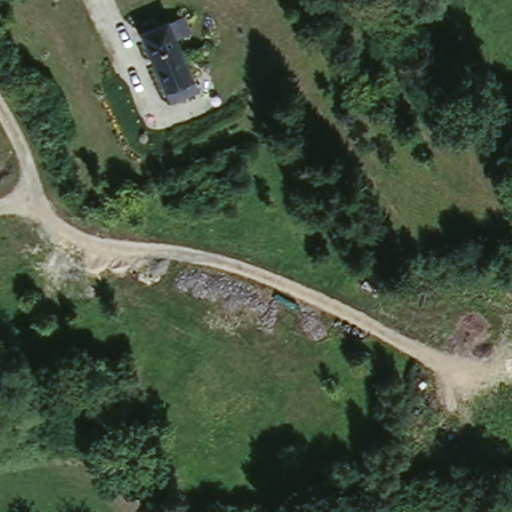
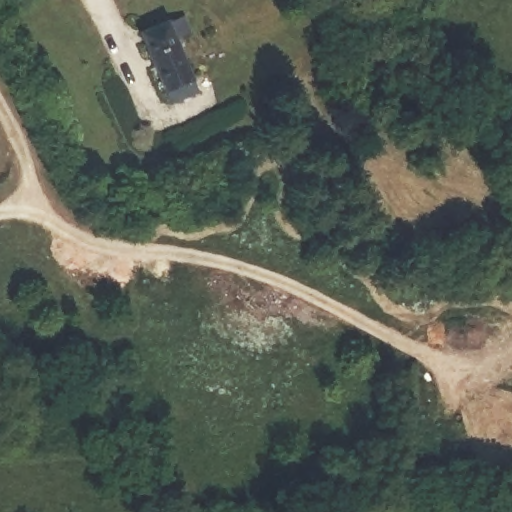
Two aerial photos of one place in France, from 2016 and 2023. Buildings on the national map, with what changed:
unchanged [(185,12),(194,33),(184,36),(204,91),(168,102),(140,29),(185,12)]

